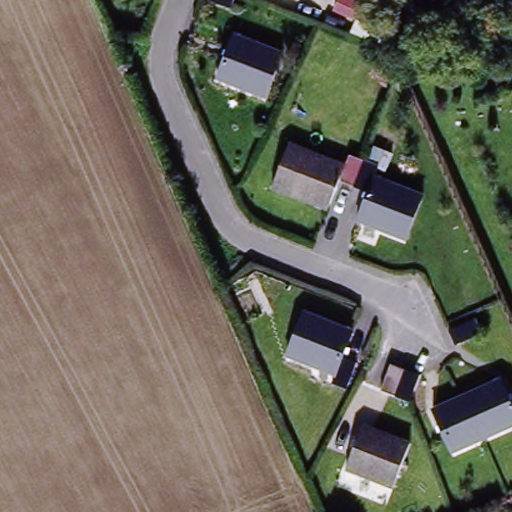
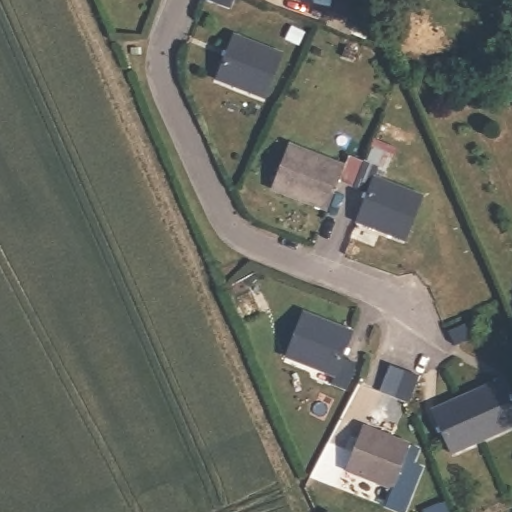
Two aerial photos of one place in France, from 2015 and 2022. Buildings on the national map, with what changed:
unchanged [(235,0),(232,9),(207,0),(235,0)]
unchanged [(283,55),(269,98),(222,79),(237,39),(283,55)]
unchanged [(410,241),(362,225),(373,194),(358,190),(344,185),(334,214),(278,193),(293,150),(350,170),(353,160),(368,164),(382,168),(378,181),(425,196),(410,241)]
unchanged [(348,389),(333,383),(337,375),(291,358),(307,315),(353,332),(343,359),(358,366),(348,389)]
unchanged [(475,334),(451,346),(445,333),(470,322),(475,334)]
unchanged [(420,378),(418,390),(410,404),(397,399),(383,393),(392,369),(396,370),(407,375),(418,379),(420,378)]
unchanged [(500,381),(512,407),(512,426),(482,441),(463,399),(500,381)]
unchanged [(482,441),(455,452),(437,410),(463,399),(482,441)]
unchanged [(414,449),(399,491),(351,474),(367,432),(414,449)]

